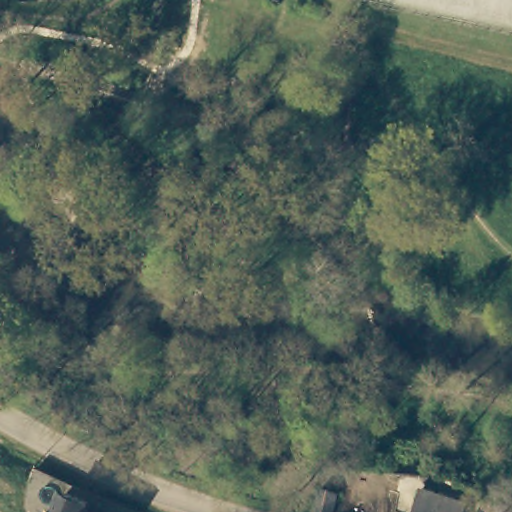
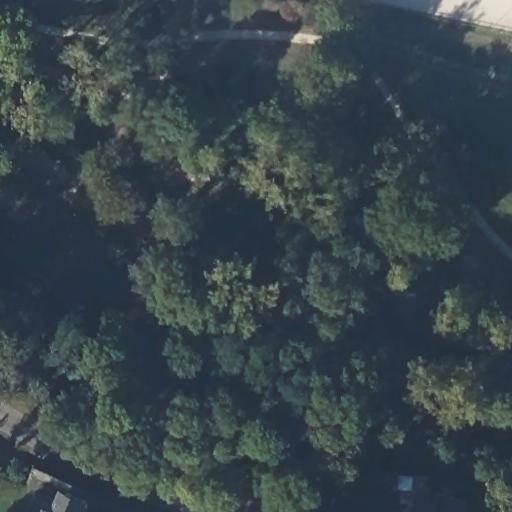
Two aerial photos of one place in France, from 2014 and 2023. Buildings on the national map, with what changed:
unchanged [(40,506),(47,508),(57,487),(81,497),(76,510),(81,512),(38,512),(40,506)]
unchanged [(455,512),(407,512),(413,490),(457,503),(455,512)]

